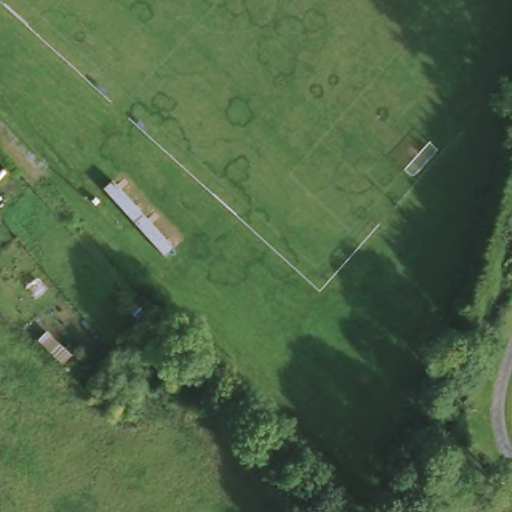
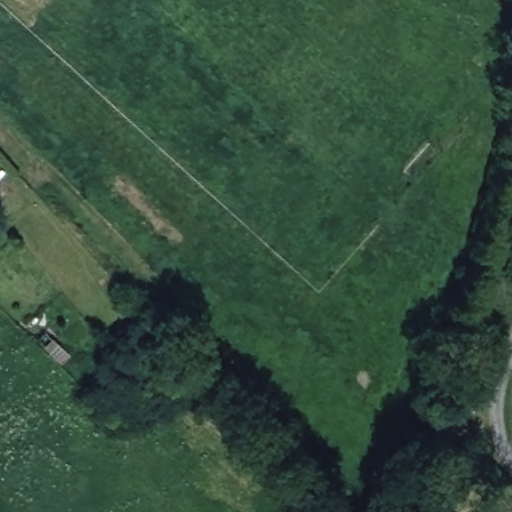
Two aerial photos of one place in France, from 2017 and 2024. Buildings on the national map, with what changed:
unchanged [(180,243),(171,252),(110,185),(120,176),(180,243)]

